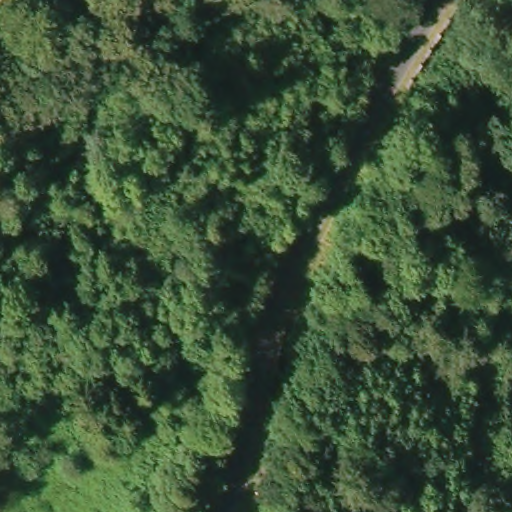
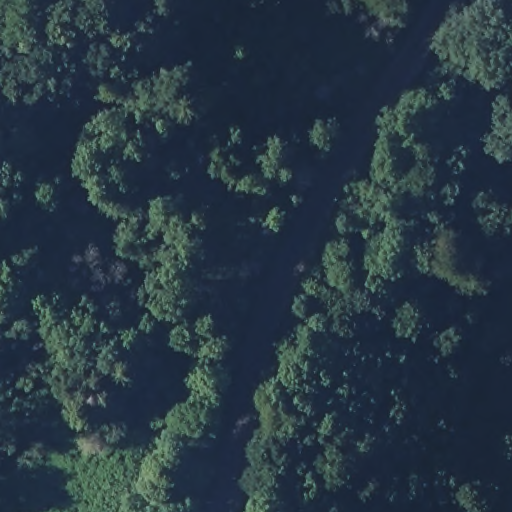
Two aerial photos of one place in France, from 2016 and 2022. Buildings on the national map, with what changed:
[]

